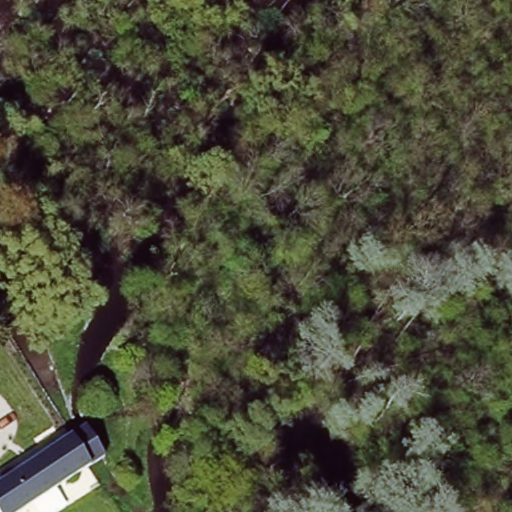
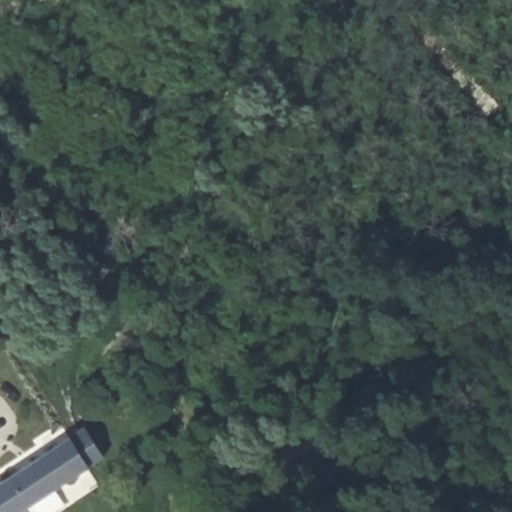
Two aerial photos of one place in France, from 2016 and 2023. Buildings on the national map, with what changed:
unchanged [(90,426),(110,456),(105,461),(95,470),(21,512),(0,512),(0,473),(20,459),(25,466),(70,438),(84,430),(90,426)]

